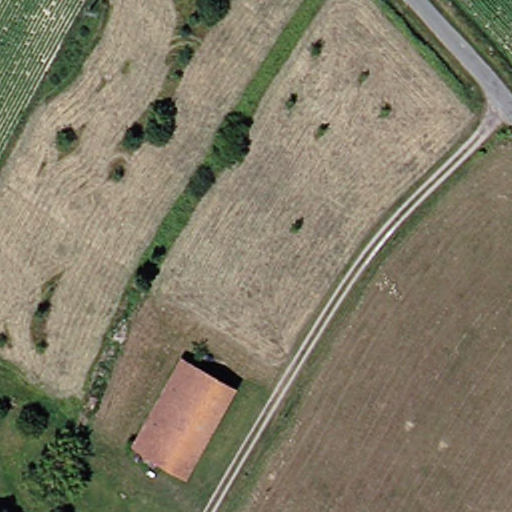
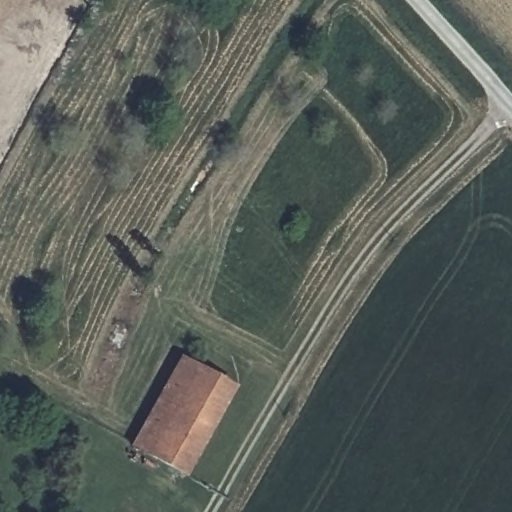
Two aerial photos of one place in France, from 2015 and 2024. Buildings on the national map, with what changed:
unchanged [(128,448),(172,358),(225,384),(183,473),(128,448)]

